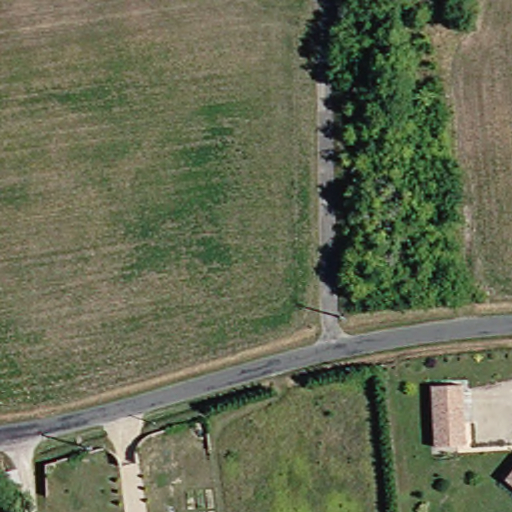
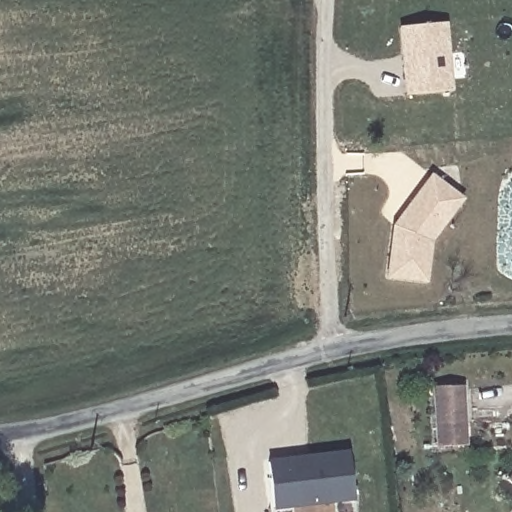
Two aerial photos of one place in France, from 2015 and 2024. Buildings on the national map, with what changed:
new [(453,90),(405,96),(397,27),(447,22),(453,90)]
new [(460,191),(468,198),(447,226),(437,241),(431,281),(392,276),(399,225),(406,216),(437,174),(460,191)]
unchanged [(442,444),(439,386),(467,385),(470,445),(442,444)]
new [(349,450),(355,501),(275,510),(269,459),(349,450)]

